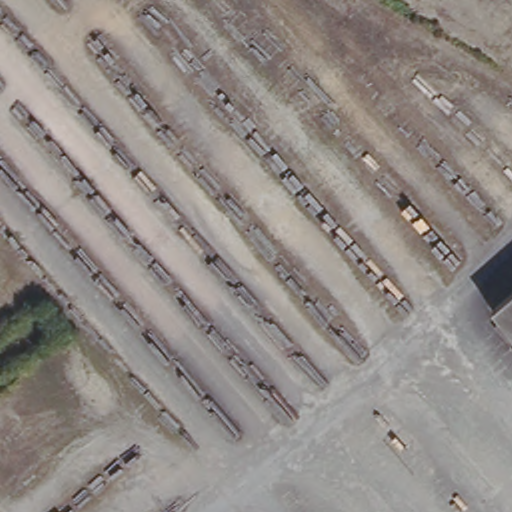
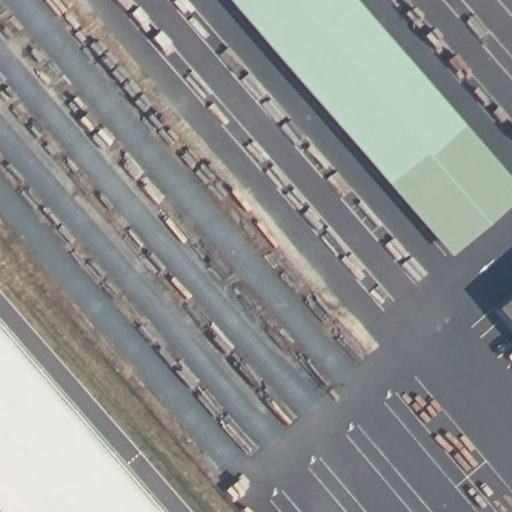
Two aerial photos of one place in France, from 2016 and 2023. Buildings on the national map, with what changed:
new [(512,205),(445,268),(210,0),(346,0),(512,188),(512,205)]
unchanged [(512,287),(512,321),(495,300),(512,287)]
new [(159,512),(0,512),(0,332),(159,512)]

